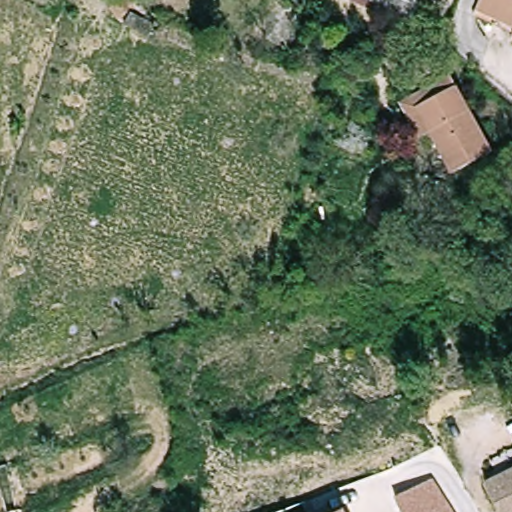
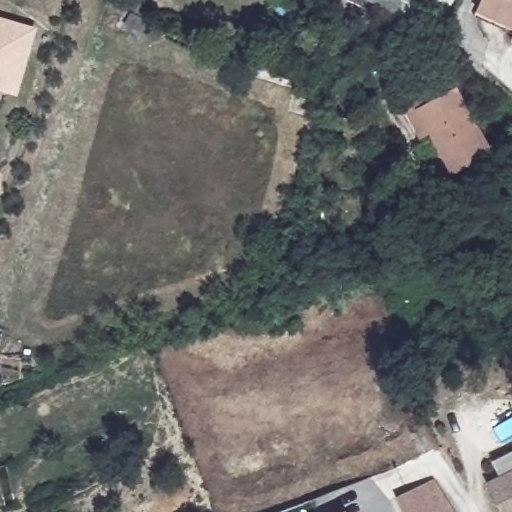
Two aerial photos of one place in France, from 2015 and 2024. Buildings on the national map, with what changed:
unchanged [(402,9),(381,0),(406,0),(402,9)]
unchanged [(476,12),(479,5),(481,0),(512,0),(512,29),(476,12)]
unchanged [(157,27),(152,39),(124,27),(129,15),(157,27)]
new [(0,17),(15,22),(37,29),(30,52),(24,75),(16,97),(0,91),(0,17)]
unchanged [(456,170),(434,127),(424,133),(406,101),(416,95),(455,74),(460,84),(495,148),(456,170)]
unchanged [(501,512),(487,487),(512,472),(512,512),(501,512)]
unchanged [(404,512),(396,494),(435,477),(454,512),(404,512)]
unchanged [(346,512),(339,512),(345,510),(346,512)]

